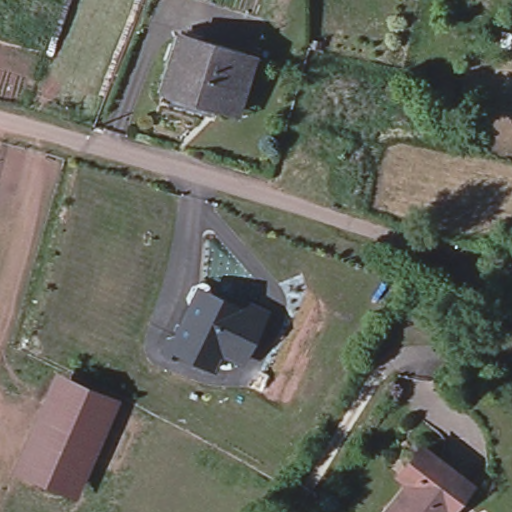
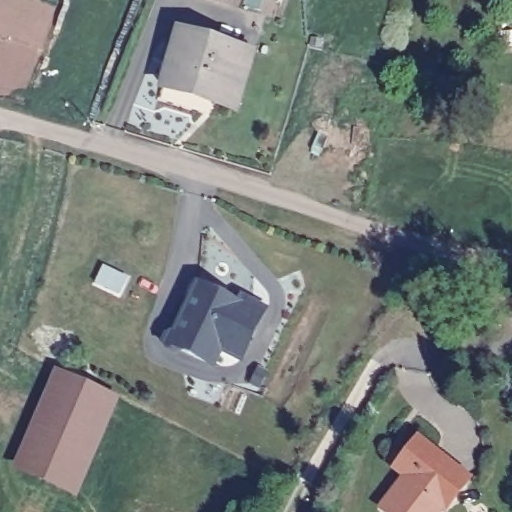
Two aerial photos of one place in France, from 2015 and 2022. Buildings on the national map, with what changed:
unchanged [(498,45),(500,28),(512,29),(512,46),(498,45)]
unchanged [(252,55),(237,108),(163,87),(180,34),(252,55)]
unchanged [(222,355),(216,369),(179,354),(175,358),(162,353),(160,342),(164,332),(172,332),(192,281),(268,313),(243,363),(222,355)]
unchanged [(109,392),(62,487),(22,469),(66,375),(109,392)]
unchanged [(383,504),(409,474),(400,467),(406,459),(422,440),(462,475),(470,481),(443,512),(392,512),(383,504)]

